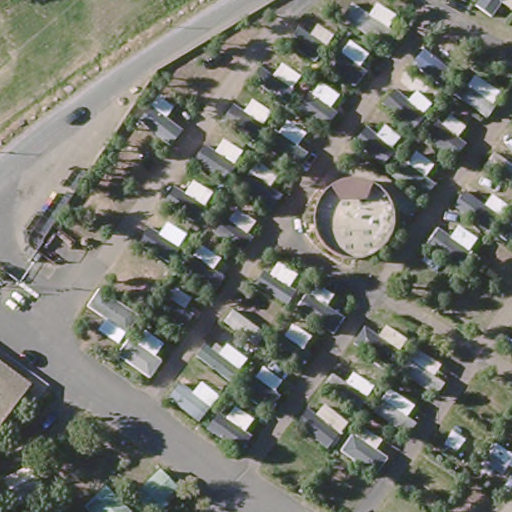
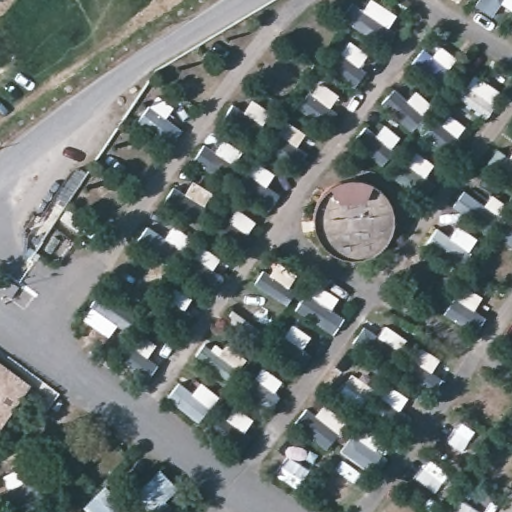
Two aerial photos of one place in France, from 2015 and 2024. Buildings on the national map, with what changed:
unchanged [(313,215),(313,212),(314,209),(315,205),(317,200),(318,197),(320,194),(322,190),(326,186),(327,185),(332,182),(335,180),(338,178),(341,177),(345,176),(349,176),(351,175),(355,175),(358,176),(361,176),(364,177),(366,177),(369,179),(372,180),(374,181),(378,184),(382,187),(384,190),(386,192),(388,196),(390,199),(391,202),(392,205),(393,208),(393,211),(393,214),(393,221),(392,226),(390,231),(389,234),(387,236),(386,239),(384,241),(382,243),(380,245),(377,248),(372,251),(369,252),(366,253),(364,254),(357,255),(352,255),(348,255),(343,254),(334,251),(324,243),(320,238),(319,236),(317,233),(316,231),(316,230),(315,226),(314,222),(313,219),(313,217),(313,215)]
unchanged [(15,399),(0,388),(0,370),(24,387),(15,399)]
unchanged [(0,419),(0,388),(15,399),(0,419)]
unchanged [(162,512),(148,512),(132,493),(157,472),(183,493),(162,512)]

